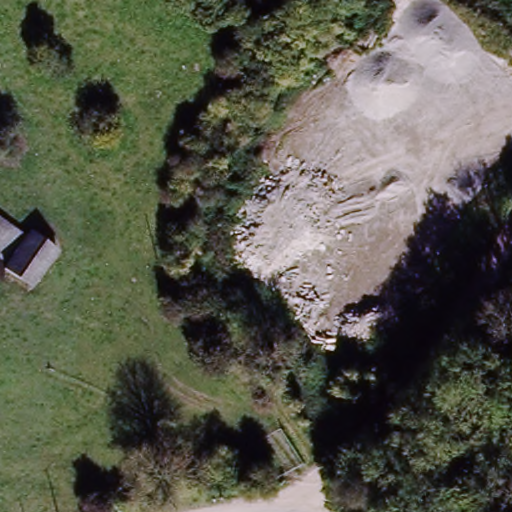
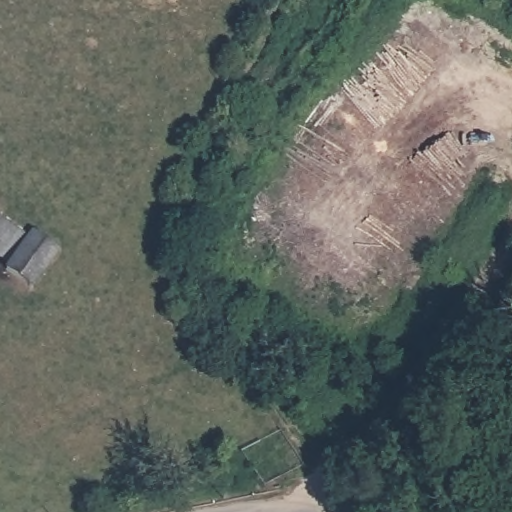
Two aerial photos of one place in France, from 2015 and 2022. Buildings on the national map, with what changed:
unchanged [(0,222),(58,256),(33,296),(6,278),(0,273),(0,222)]

